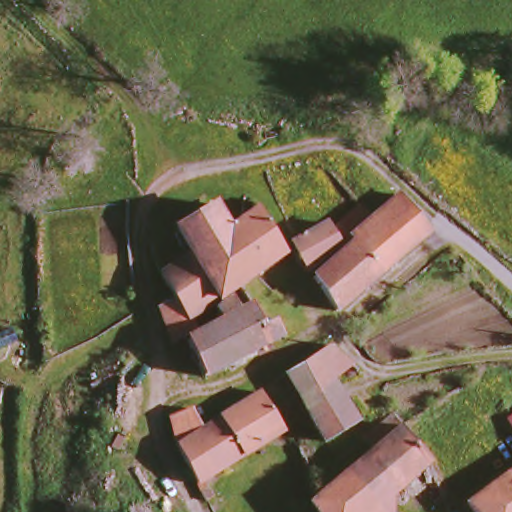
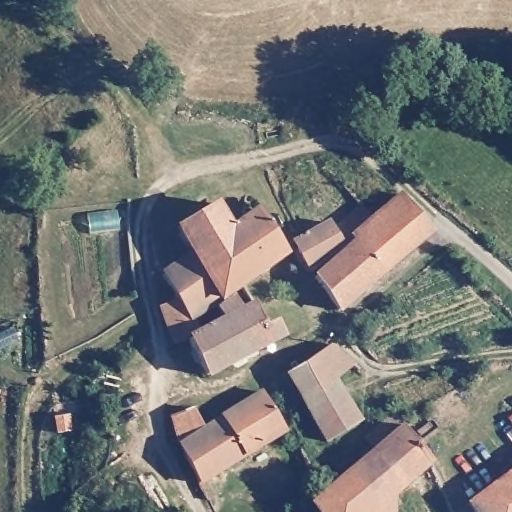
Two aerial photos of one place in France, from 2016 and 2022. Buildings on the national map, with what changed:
unchanged [(432,233),(337,310),(306,278),(344,246),(339,236),(371,213),(376,220),(390,207),(400,198),(432,233)]
unchanged [(300,265),(286,232),(280,221),(320,199),(339,236),(300,265)]
unchanged [(192,251),(177,227),(216,200),(232,220),(253,204),(283,251),(219,296),(192,251)]
unchanged [(158,283),(167,276),(163,270),(192,251),(219,296),(191,316),(180,324),(158,283)]
unchanged [(280,331),(206,373),(184,338),(227,315),(220,302),(231,296),(239,307),(242,305),(255,325),(273,316),(280,331)]
unchanged [(281,375),(321,342),(366,369),(337,395),(349,418),(319,435),(300,403),(281,375)]
unchanged [(203,505),(194,487),(172,441),(169,411),(187,402),(200,423),(257,385),(284,428),(202,481),(212,500),(203,505)]
unchanged [(409,427),(433,461),(379,503),(386,512),(315,512),(307,502),(402,417),(409,427)]
unchanged [(461,502),(512,463),(512,512),(468,512),(461,502)]

